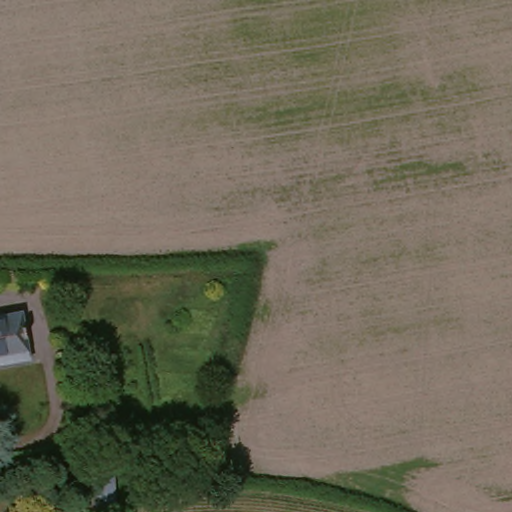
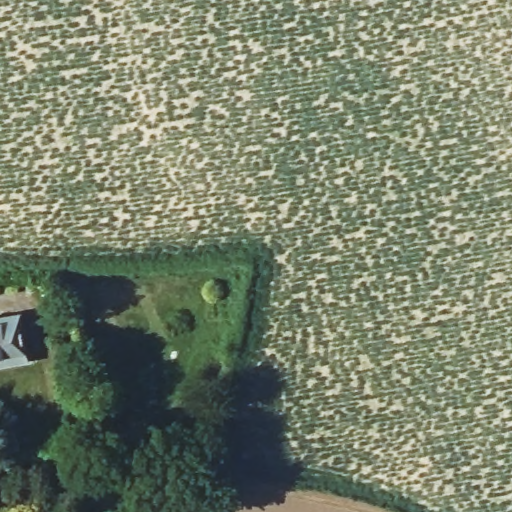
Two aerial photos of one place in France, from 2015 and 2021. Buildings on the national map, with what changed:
unchanged [(0,362),(0,318),(23,315),(29,358),(0,362)]

